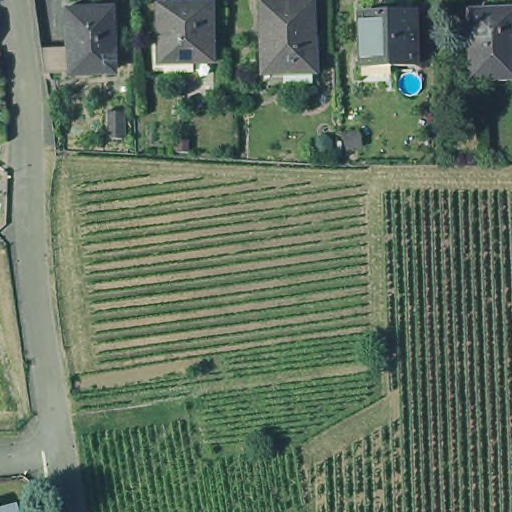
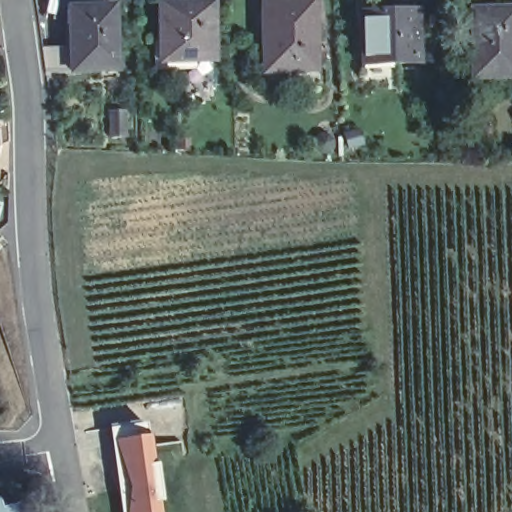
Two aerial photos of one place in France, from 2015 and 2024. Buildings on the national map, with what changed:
unchanged [(115,0),(119,61),(74,62),(48,62),(44,37),(73,36),(70,0),(115,0)]
unchanged [(159,58),(157,0),(212,0),(213,57),(159,58)]
unchanged [(264,64),(261,0),(316,0),(317,63),(264,64)]
unchanged [(473,70),(472,0),(497,1),(512,1),(512,70),(473,70)]
unchanged [(366,65),(364,14),(419,12),(419,63),(366,65)]
new [(149,421),(161,512),(122,512),(110,426),(149,421)]
unchanged [(0,501),(1,500),(4,507),(21,503),(23,512),(0,512),(0,501)]

